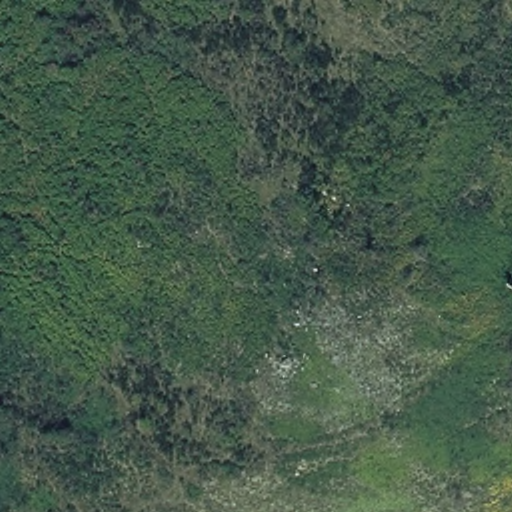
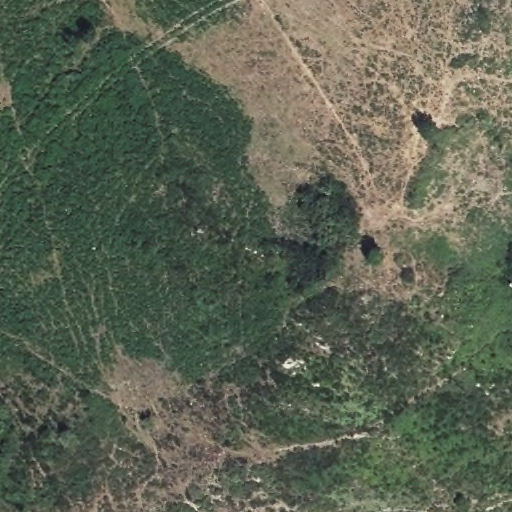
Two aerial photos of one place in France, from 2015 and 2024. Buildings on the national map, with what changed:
[]

